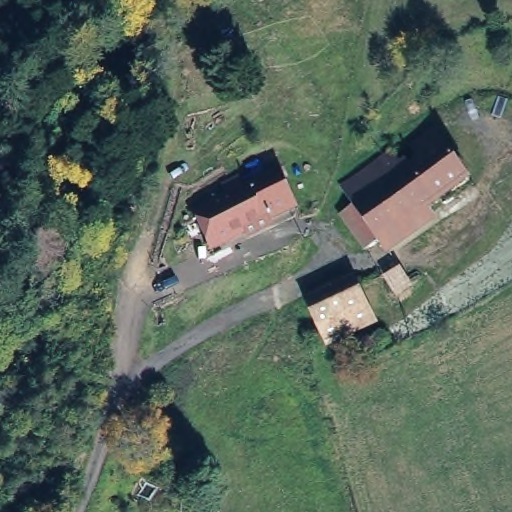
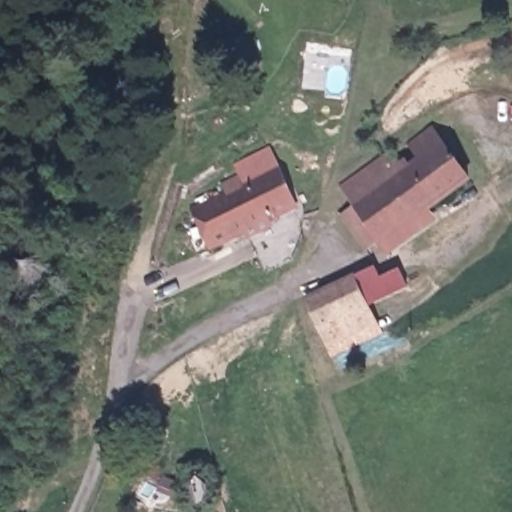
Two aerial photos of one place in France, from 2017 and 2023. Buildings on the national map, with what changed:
unchanged [(329,213),(350,203),(336,183),(426,117),(476,180),(433,207),(441,219),(375,256),(365,262),(362,259),(329,213)]
unchanged [(192,203),(221,192),(220,184),(237,179),(239,184),(276,172),(293,210),(220,242),(207,245),(192,203)]
unchanged [(398,258),(413,286),(392,301),(377,271),(398,258)]
unchanged [(353,270),(378,327),(323,352),(300,294),(353,270)]

